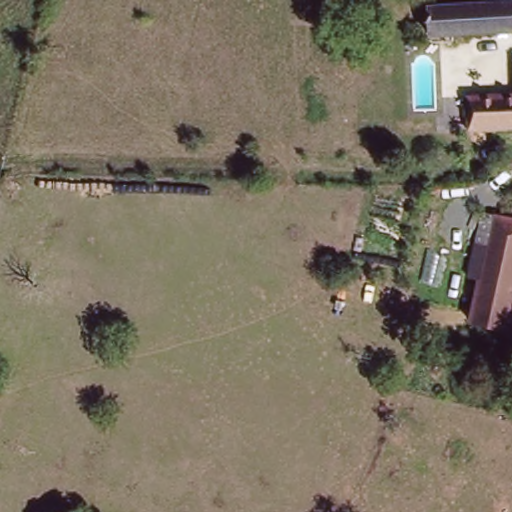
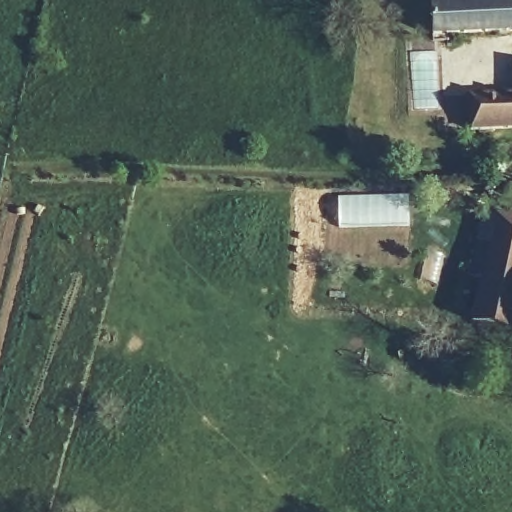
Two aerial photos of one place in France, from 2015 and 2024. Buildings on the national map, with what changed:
unchanged [(433,30),(431,2),(464,0),(512,0),(512,26),(433,30)]
unchanged [(474,127),(472,92),(512,91),(512,125),(474,127)]
new [(409,195),(410,226),(338,228),(337,196),(409,195)]
unchanged [(472,327),(482,285),(470,283),(485,218),(512,224),(512,336),(472,327)]

